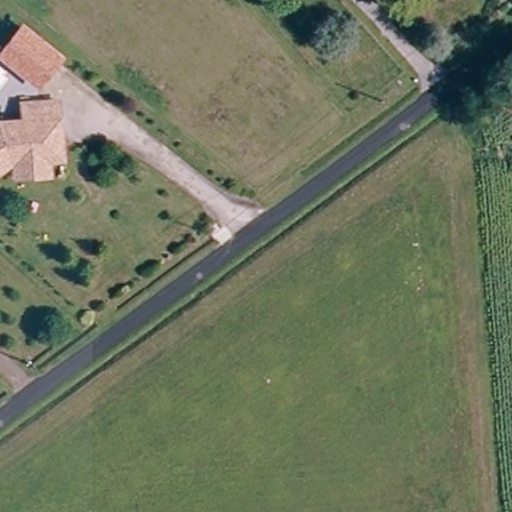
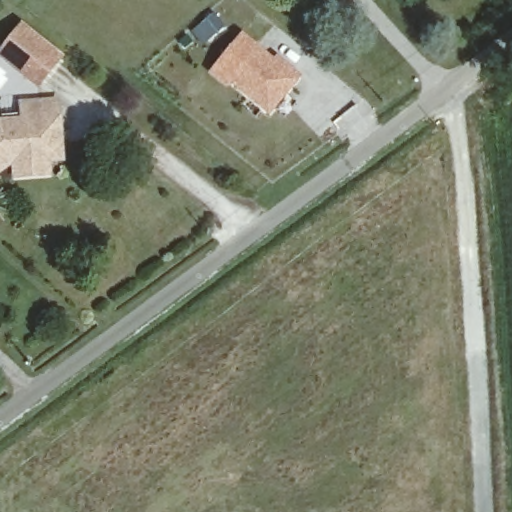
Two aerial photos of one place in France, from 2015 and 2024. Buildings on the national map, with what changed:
unchanged [(60,50),(38,78),(0,47),(0,45),(20,19),(60,50)]
new [(275,58),(278,53),(303,74),(270,116),(227,80),(258,43),(275,58)]
unchanged [(5,176),(4,161),(0,164),(0,121),(14,119),(12,102),(47,99),(50,121),(51,138),(53,156),(37,158),(39,173),(5,176)]

